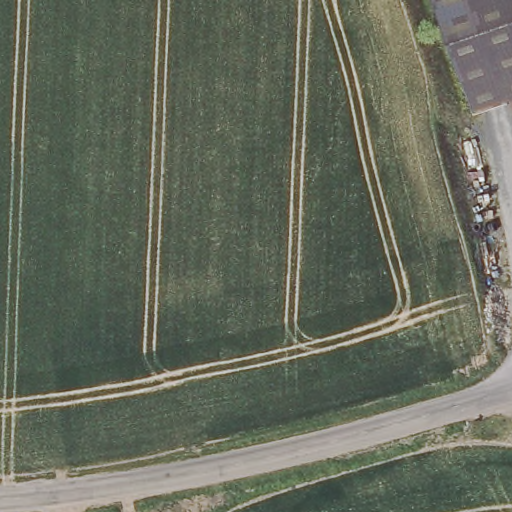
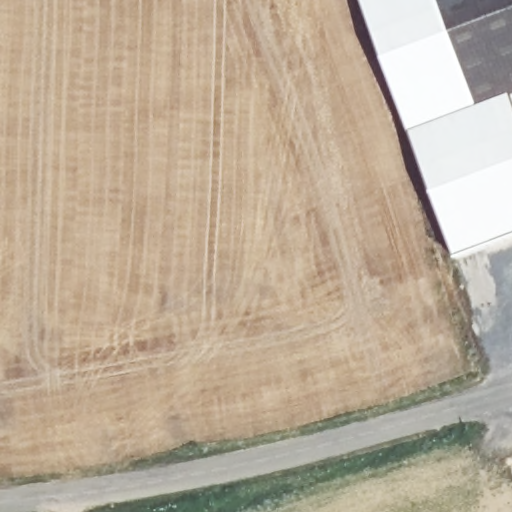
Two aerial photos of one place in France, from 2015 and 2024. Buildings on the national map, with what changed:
new [(453,256),(359,0),(439,0),(480,110),(512,99),(512,235),(453,256)]
unchanged [(480,110),(439,0),(512,0),(512,99),(480,110)]

